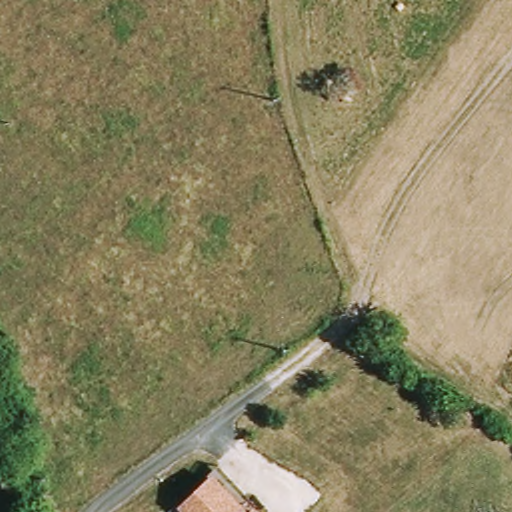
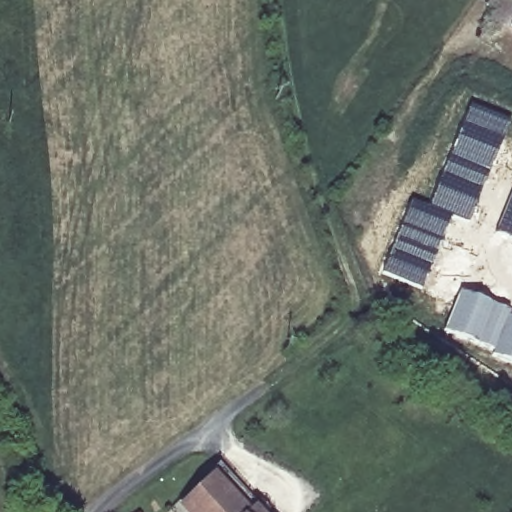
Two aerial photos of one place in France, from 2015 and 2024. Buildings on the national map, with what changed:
new [(466,112),(506,127),(465,223),(450,217),(443,215),(428,209),(466,112)]
new [(512,243),(493,235),(512,191),(512,243)]
new [(410,202),(428,209),(443,215),(441,219),(448,222),(421,288),(381,272),(410,202)]
new [(460,291),(510,312),(493,348),(443,328),(460,291)]
new [(510,312),(512,313),(512,360),(492,352),(493,348),(510,312)]
unchanged [(255,504),(263,512),(184,512),(177,505),(214,471),(221,465),(255,504)]

